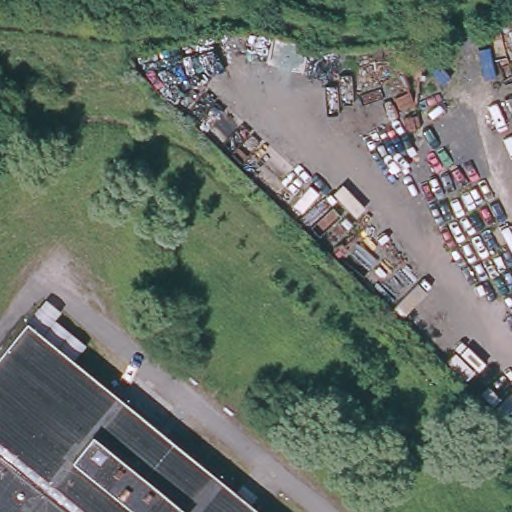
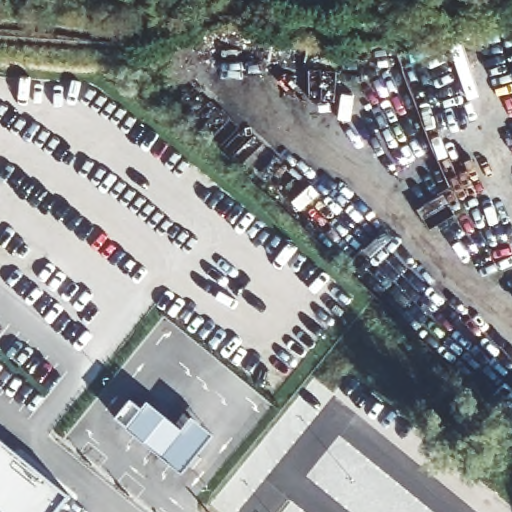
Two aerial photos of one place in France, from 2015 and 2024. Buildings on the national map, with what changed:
demolished [(269,512),(0,512),(0,354),(30,317),(269,512)]
new [(130,403),(141,412),(147,405),(182,433),(192,421),(212,436),(182,473),(117,421),(130,403)]
new [(57,512),(0,512),(0,445),(67,500),(57,512)]

